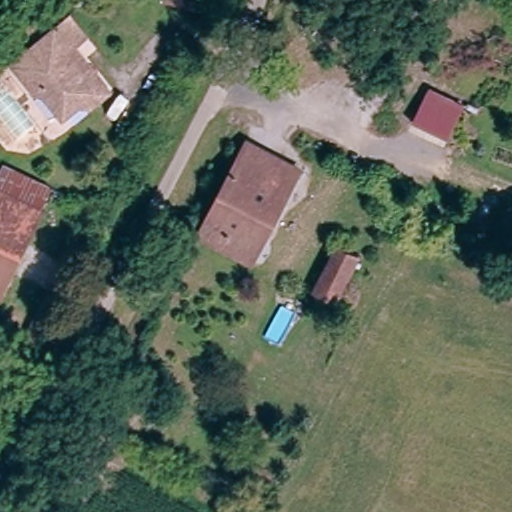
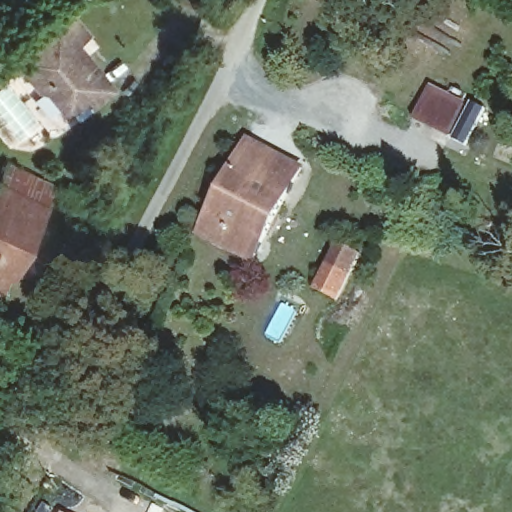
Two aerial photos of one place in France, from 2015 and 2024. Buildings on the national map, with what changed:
unchanged [(89,97),(83,91),(69,102),(56,101),(41,82),(35,86),(12,55),(60,20),(66,29),(83,50),(107,83),(89,97)]
unchanged [(451,133),(424,120),(414,115),(430,82),(440,87),(465,100),(451,133)]
unchanged [(246,137),(301,165),(255,261),(200,235),(246,137)]
unchanged [(0,186),(0,177),(7,164),(56,187),(46,207),(0,186)]
unchanged [(46,207),(1,292),(0,292),(0,186),(46,207)]
unchanged [(334,305),(310,295),(335,238),(358,249),(334,305)]
unchanged [(50,320),(37,347),(17,336),(28,310),(50,320)]

